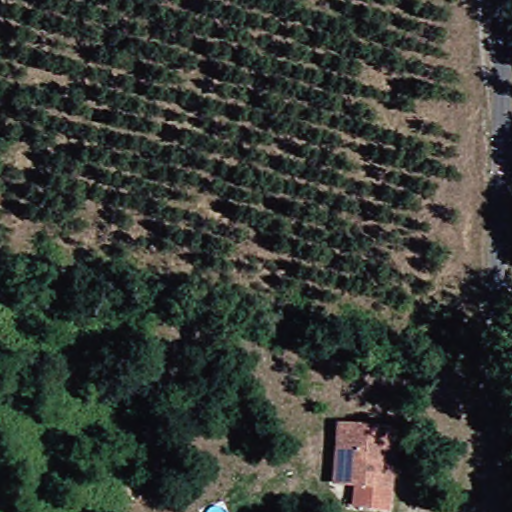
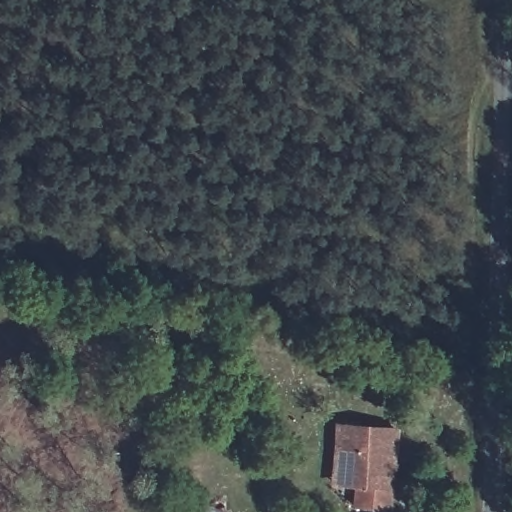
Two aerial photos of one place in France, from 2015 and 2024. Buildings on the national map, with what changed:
unchanged [(393,433),(387,512),(354,512),(353,488),(346,489),(332,488),(334,452),(336,452),(337,428),(393,433)]

